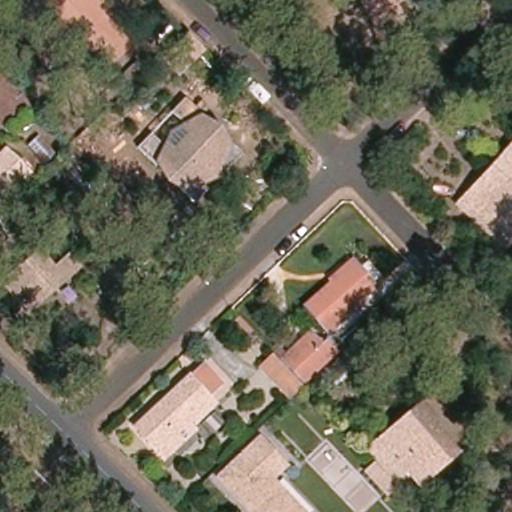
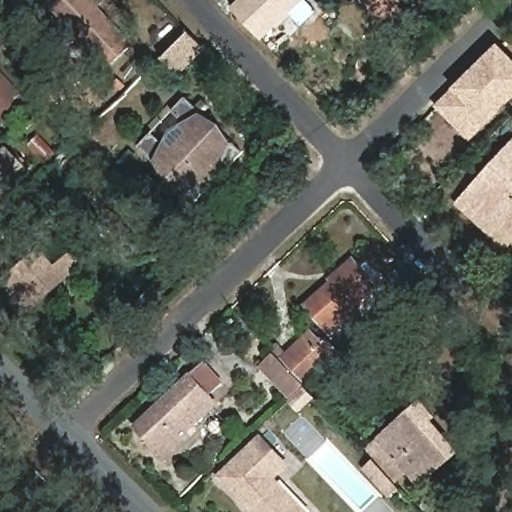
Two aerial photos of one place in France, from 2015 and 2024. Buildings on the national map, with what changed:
unchanged [(126,40),(104,64),(50,6),(57,0),(90,0),(126,40)]
new [(239,0),(307,0),(317,11),(300,26),(289,15),(263,40),(232,7),(239,0)]
unchanged [(410,13),(376,29),(362,0),(404,0),(410,13)]
unchanged [(168,53),(164,49),(153,37),(156,34),(178,11),(189,24),(193,28),(168,53)]
new [(469,142),(434,106),(499,43),(512,57),(512,100),(469,142)]
new [(204,44),(208,48),(183,72),(178,69),(204,44)]
unchanged [(9,110),(15,117),(0,133),(0,86),(15,102),(9,110)]
unchanged [(234,143),(219,158),(210,146),(189,170),(200,180),(194,187),(194,189),(186,197),(130,143),(144,127),(169,150),(189,127),(164,102),(178,88),(234,143)]
unchanged [(508,247),(458,206),(512,144),(512,242),(508,247)]
unchanged [(0,203),(0,151),(6,145),(32,173),(0,203)]
unchanged [(90,180),(78,191),(49,160),(60,148),(90,180)]
unchanged [(56,268),(68,255),(83,268),(34,315),(4,283),(39,249),(56,268)]
unchanged [(373,285),(333,327),(312,304),(352,262),(373,285)]
unchanged [(333,358),(305,386),(282,358),(310,332),(333,358)]
unchanged [(289,400),(257,365),(274,350),(282,358),(305,386),(289,400)]
unchanged [(224,379),(200,404),(208,411),(194,424),(200,429),(166,465),(134,432),(203,357),(224,379)]
unchanged [(426,392),(443,408),(431,420),(459,449),(431,482),(416,466),(409,473),(408,472),(393,454),(392,456),(381,441),(426,392)]
unchanged [(308,512),(251,512),(215,474),(259,431),(292,465),(277,477),(308,512)]
unchanged [(376,463),(368,452),(381,441),(392,456),(393,454),(408,472),(387,496),(366,473),(376,463)]

